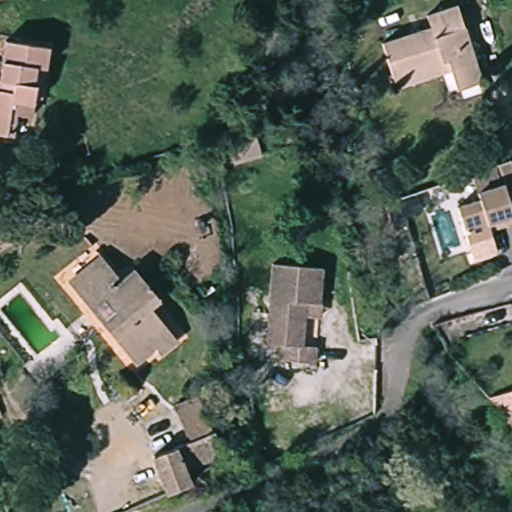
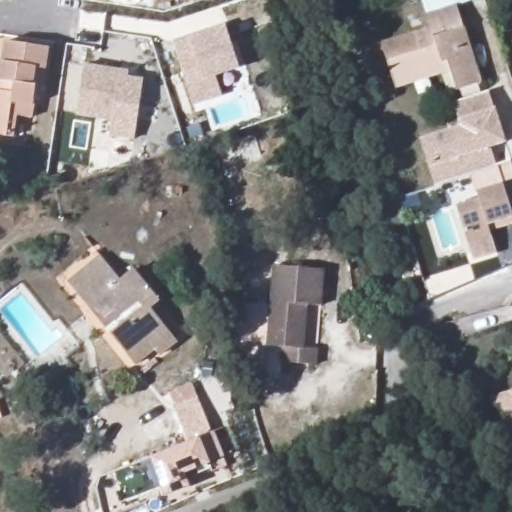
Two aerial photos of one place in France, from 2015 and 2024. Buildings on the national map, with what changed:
unchanged [(458,6),(482,82),(457,89),(451,68),(396,85),(383,42),(430,27),(427,15),(458,6)]
new [(225,24),(227,30),(240,67),(215,76),(223,96),(193,106),(173,42),(225,24)]
unchanged [(37,98),(30,97),(27,117),(13,115),(10,137),(0,135),(0,51),(2,41),(45,48),(37,98)]
new [(120,71),(128,72),(127,78),(142,81),(133,139),(108,135),(111,119),(75,114),(83,65),(120,71)]
new [(415,136),(455,122),(453,115),(492,102),(510,159),(433,187),(415,136)]
unchanged [(485,230),(492,252),(468,260),(452,208),(475,201),(473,193),(496,186),(490,167),(507,162),(512,179),(512,221),(485,230)]
unchanged [(150,348),(145,342),(126,357),(63,280),(95,254),(113,276),(127,266),(149,292),(140,301),(167,333),(150,348)]
unchanged [(270,265),(320,268),(317,305),(302,303),(299,346),(312,347),(311,362),(277,360),(278,345),(263,343),(270,265)]
new [(512,391),(512,414),(503,416),(489,398),(512,391)]
unchanged [(154,457),(140,420),(200,397),(214,430),(202,435),(203,438),(154,457)]
unchanged [(154,457),(203,438),(217,433),(225,453),(186,468),(190,483),(167,493),(154,457)]

